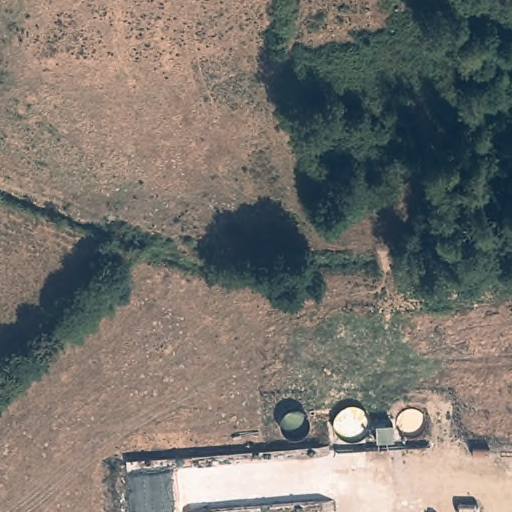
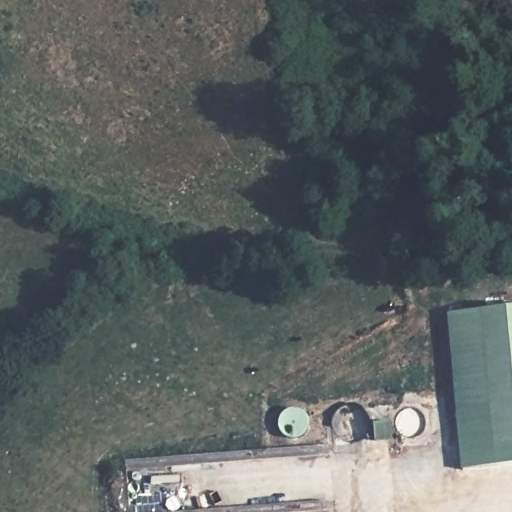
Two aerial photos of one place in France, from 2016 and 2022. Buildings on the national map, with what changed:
new [(512,308),(512,465),(463,469),(449,313),(512,308)]

